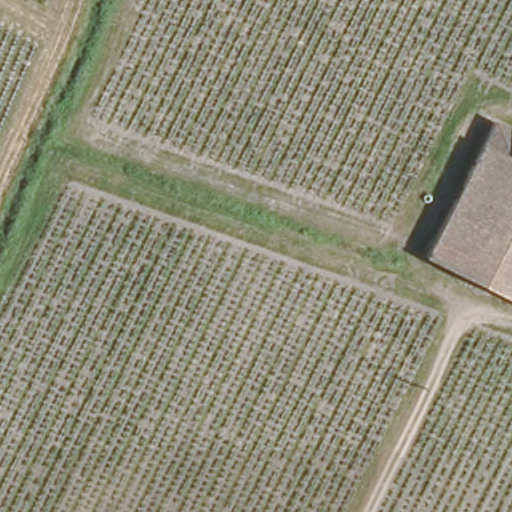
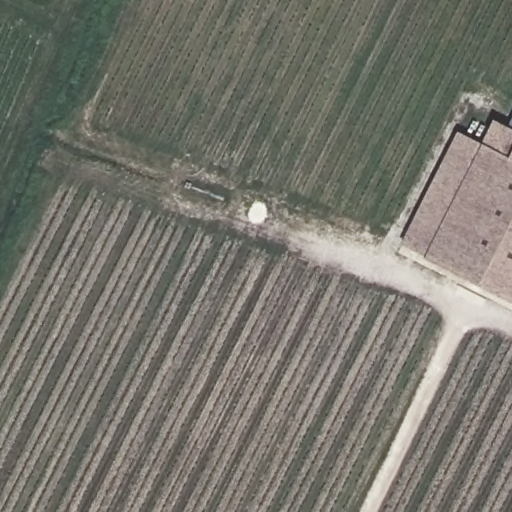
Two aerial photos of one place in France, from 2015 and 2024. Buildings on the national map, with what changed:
unchanged [(507,134),(512,136),(512,297),(422,259),(485,123),(507,134)]
new [(512,136),(507,134),(512,123),(512,136)]
new [(422,259),(400,246),(456,131),(476,141),(422,259)]

